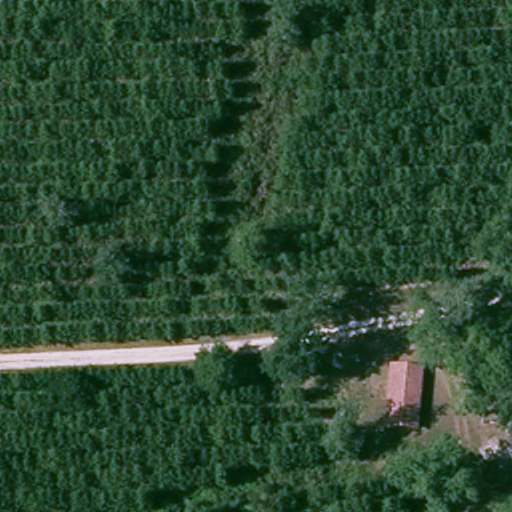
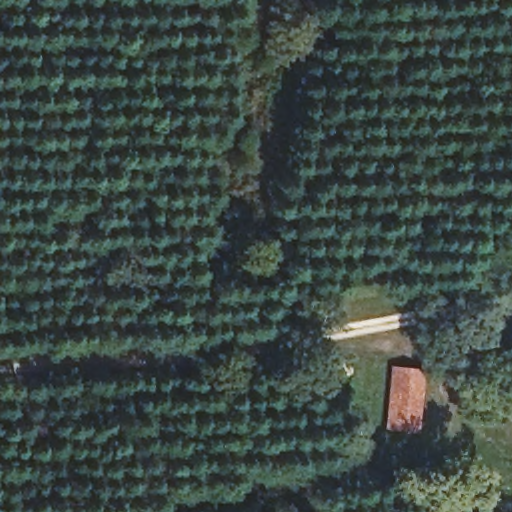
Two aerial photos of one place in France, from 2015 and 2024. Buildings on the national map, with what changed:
unchanged [(430,367),(423,427),(392,423),(399,362),(430,367)]

